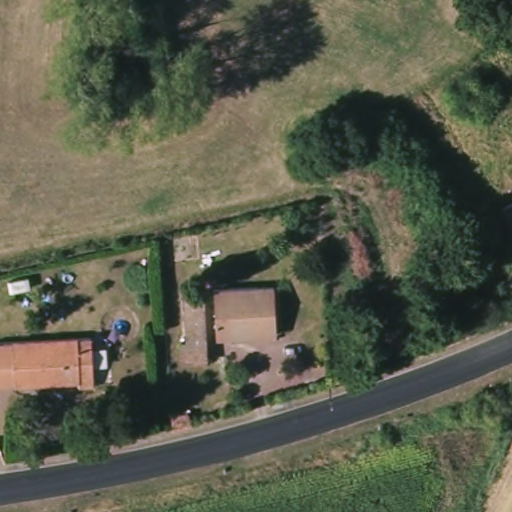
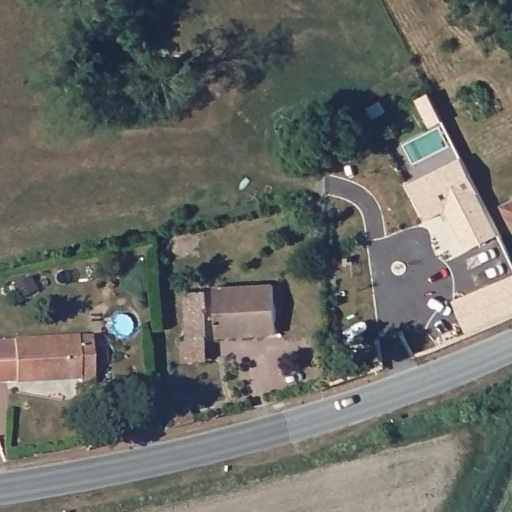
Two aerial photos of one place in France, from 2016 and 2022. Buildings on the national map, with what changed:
new [(499,233),(467,249),(447,210),(426,220),(408,184),(461,157),(499,233)]
unchanged [(512,207),(512,226),(505,211),(512,207)]
new [(469,333),(455,300),(512,277),(512,316),(469,333)]
unchanged [(280,287),(283,336),(222,339),(218,290),(280,287)]
new [(184,292),(204,291),(206,341),(207,359),(182,360),(181,342),(186,342),(184,292)]
unchanged [(21,388),(17,345),(82,340),(86,382),(21,388)]

